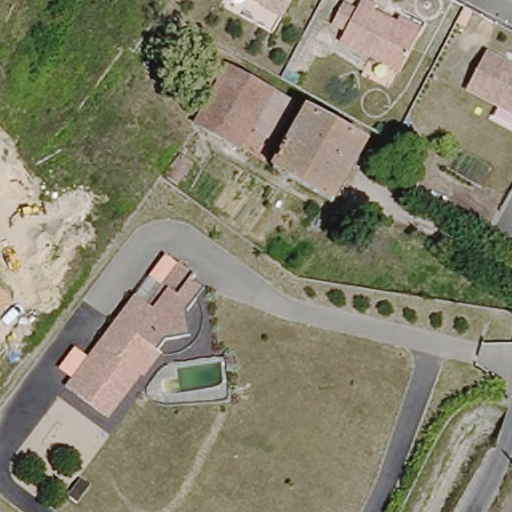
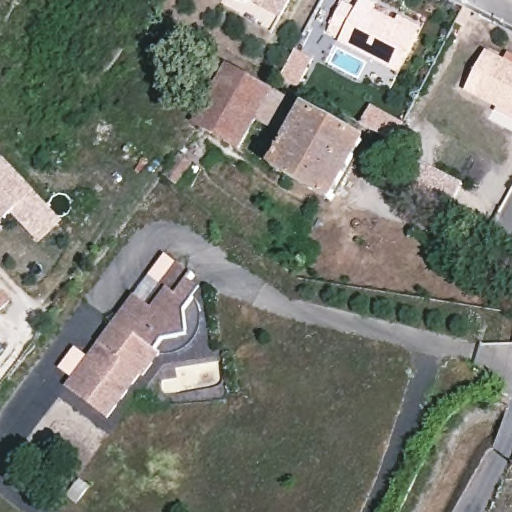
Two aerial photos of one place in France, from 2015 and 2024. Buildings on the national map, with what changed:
unchanged [(244,0),(289,0),(277,19),(244,0)]
unchanged [(335,4),(350,10),(355,0),(356,0),(369,7),(367,13),(389,24),(392,18),(415,30),(412,36),(392,74),(362,59),(332,43),(338,33),(325,25),(335,4)]
unchanged [(463,89),(482,54),(512,70),(512,116),(463,89)]
unchanged [(273,95),(238,156),(193,130),(227,70),(273,95)]
unchanged [(238,156),(273,95),(288,105),(255,165),(238,156)]
unchanged [(275,167),(309,106),(365,139),(331,199),(275,167)]
demolished [(0,186),(0,153),(18,168),(0,186)]
new [(47,205),(24,227),(13,214),(0,228),(0,162),(5,158),(37,192),(47,205)]
unchanged [(158,284),(175,262),(191,274),(186,281),(199,290),(192,299),(199,307),(201,313),(202,321),(201,329),(198,338),(190,348),(181,354),(172,356),(165,356),(157,353),(141,376),(138,374),(107,419),(65,389),(132,295),(144,304),(158,284)]
unchanged [(0,316),(0,288),(15,303),(0,316)]

